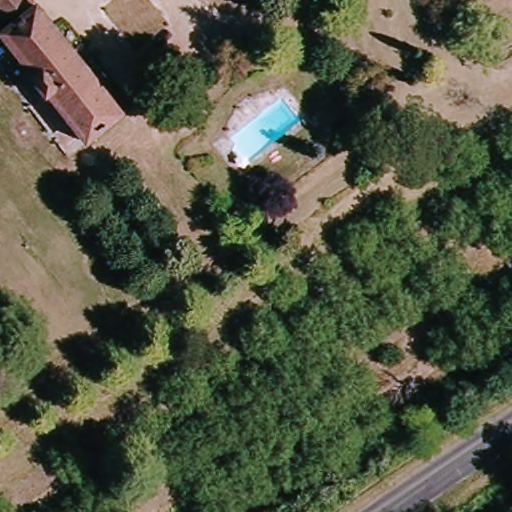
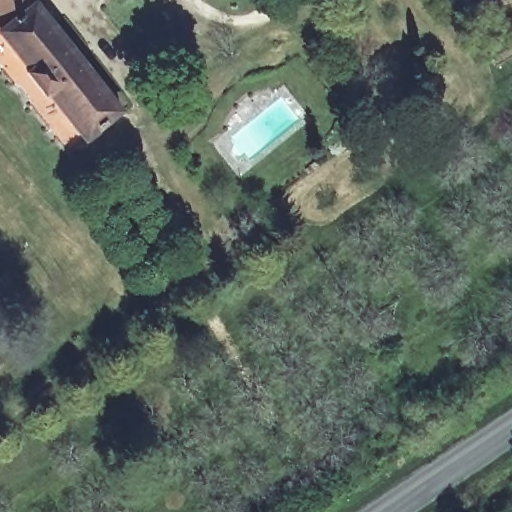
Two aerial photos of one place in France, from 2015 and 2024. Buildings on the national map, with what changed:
unchanged [(116,115),(83,144),(0,41),(0,0),(23,0),(116,115)]

